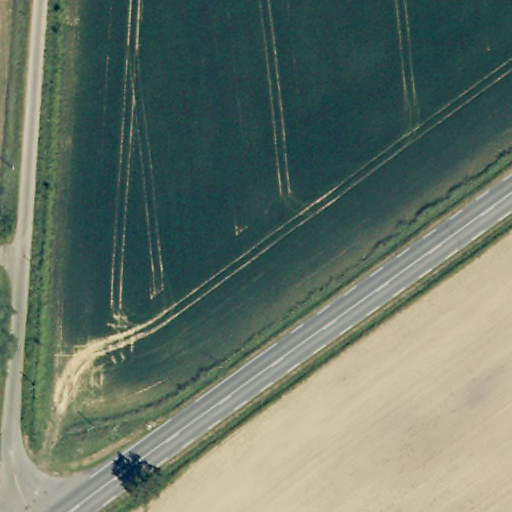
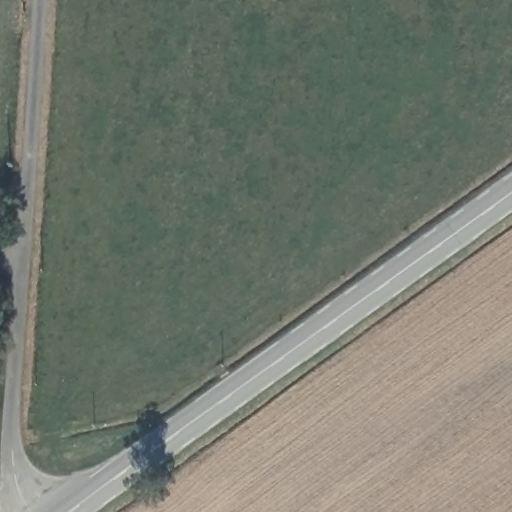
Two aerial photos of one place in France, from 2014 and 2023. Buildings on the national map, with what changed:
[]

